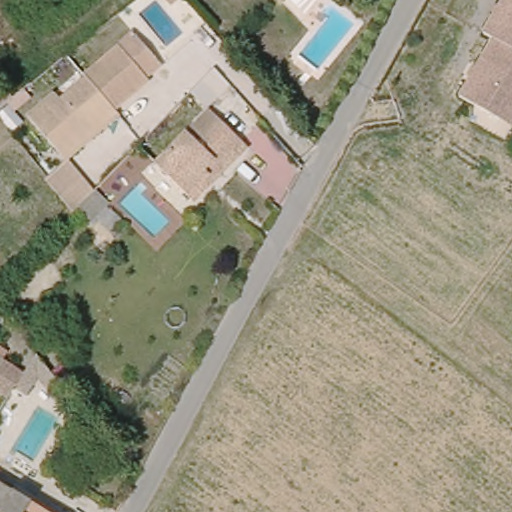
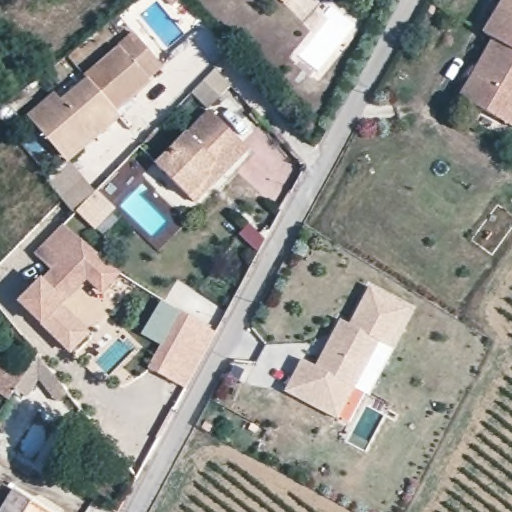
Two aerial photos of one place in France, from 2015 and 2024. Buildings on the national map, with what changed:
unchanged [(500,124),(460,100),(493,42),(483,36),(505,0),(512,0),(512,131),(500,124)]
unchanged [(78,78),(128,31),(162,71),(151,83),(153,85),(112,119),(83,86),(78,78)]
unchanged [(59,88),(68,99),(83,86),(112,119),(63,163),(26,111),(59,88)]
unchanged [(0,129),(0,110),(2,113),(7,124),(0,129)]
unchanged [(242,153),(205,188),(210,194),(192,210),(156,173),(212,121),(242,153)]
unchanged [(130,234),(110,254),(40,183),(63,163),(130,234)]
new [(50,269),(34,254),(63,224),(119,272),(102,293),(87,279),(70,295),(98,324),(80,343),(28,293),(50,269)]
new [(313,360),(322,365),(348,319),(357,324),(372,296),(405,314),(388,344),(378,338),(334,414),(295,391),(313,360)]
new [(179,309),(215,333),(185,389),(147,368),(179,309)]
unchanged [(55,397),(27,407),(19,397),(10,404),(0,397),(0,363),(27,380),(46,366),(84,414),(77,423),(55,397)]
unchanged [(0,488),(39,512),(0,512),(0,488)]

